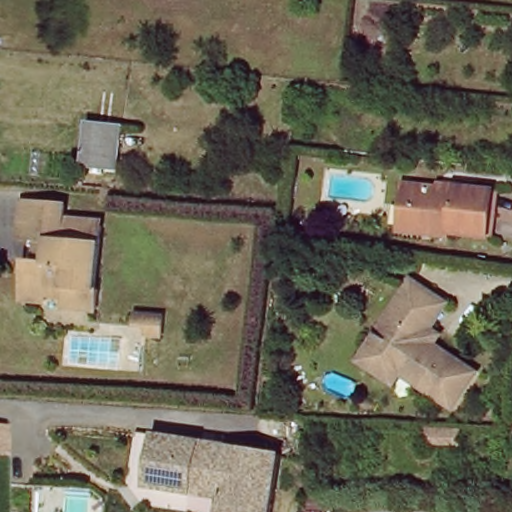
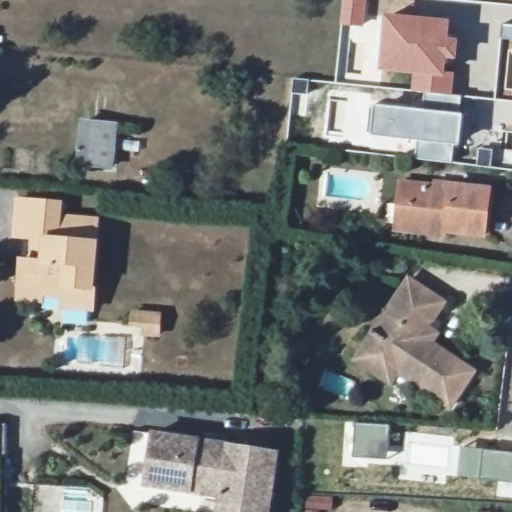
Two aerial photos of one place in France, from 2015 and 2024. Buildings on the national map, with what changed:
new [(367,0),(364,27),(340,25),(342,0),(367,0)]
new [(384,14),(451,19),(450,37),(460,37),(457,62),(449,61),(449,70),(455,71),(453,95),(424,93),(411,92),(412,74),(378,71),(384,14)]
new [(502,23),(512,24),(512,101),(502,100),(507,40),(501,40),(502,23)]
new [(416,159),(418,142),(368,136),(370,105),(423,107),(424,93),(453,95),(462,96),(460,112),(464,112),(460,146),(456,146),(453,163),(416,159)]
unchanged [(116,125),(112,167),(82,165),(86,122),(116,125)]
new [(507,150),(508,137),(505,137),(506,133),(507,133),(508,130),(512,130),(512,150),(507,150)]
unchanged [(398,222),(402,184),(435,187),(435,183),(490,190),(490,196),(485,235),(448,231),(447,235),(432,234),(397,230),(398,222)]
unchanged [(23,297),(25,285),(26,266),(27,265),(27,264),(28,263),(28,262),(29,262),(30,262),(30,261),(31,261),(32,261),(33,260),(37,261),(39,237),(21,236),(24,200),(66,204),(65,222),(104,226),(96,309),(68,307),(69,296),(46,294),(46,300),(23,297)]
unchanged [(362,356),(379,330),(415,275),(450,297),(433,323),(443,329),(436,338),(479,367),(456,402),(404,367),(397,378),(362,356)]
unchanged [(161,315),(160,336),(145,334),(146,327),(133,326),(134,312),(161,315)]
new [(353,422),(390,424),(388,459),(351,457),(353,422)]
demolished [(458,443),(426,441),(427,426),(459,428),(458,443)]
unchanged [(237,500),(162,487),(170,437),(252,450),(259,451),(294,457),(285,512),(235,512),(237,500)]
new [(460,446),(512,452),(512,484),(456,477),(460,446)]
unchanged [(334,498),(333,511),(308,509),(309,497),(334,498)]
unchanged [(319,512),(307,512),(307,511),(320,512),(319,512)]

